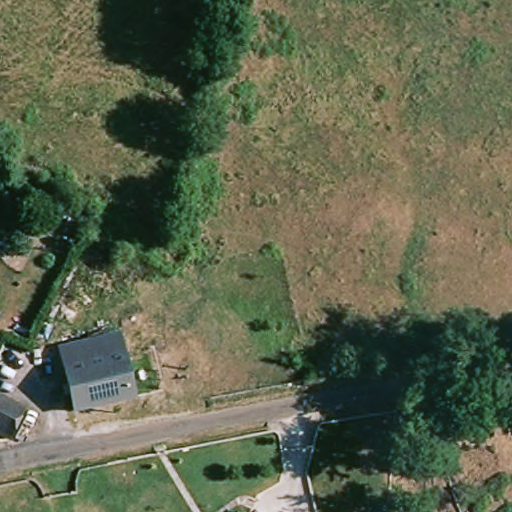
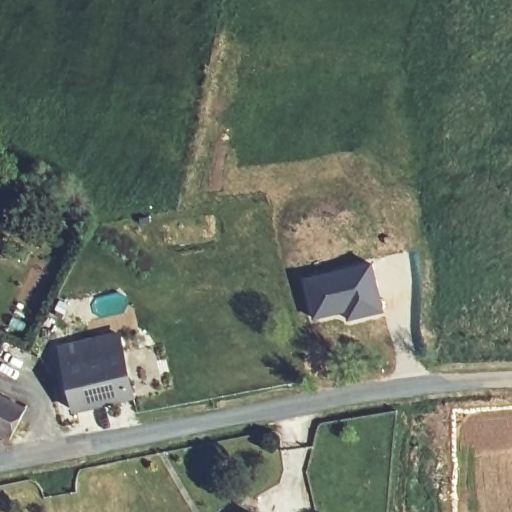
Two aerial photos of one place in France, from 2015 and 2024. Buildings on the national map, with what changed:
new [(373,262),(385,312),(345,322),(342,315),(311,320),(301,277),(373,262)]
unchanged [(164,391),(75,412),(60,348),(149,327),(164,391)]
unchanged [(10,440),(0,436),(0,397),(25,410),(10,440)]

